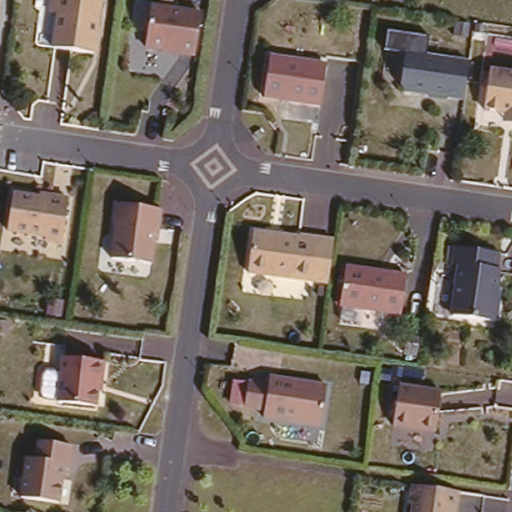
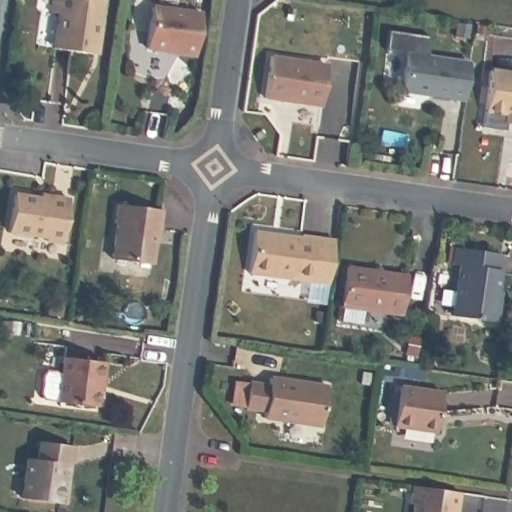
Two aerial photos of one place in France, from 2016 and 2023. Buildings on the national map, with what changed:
unchanged [(100,56),(96,55),(55,49),(60,14),(53,14),(55,0),(101,0),(105,1),(100,28),(104,29),(100,56)]
unchanged [(171,50),(152,47),(158,6),(208,14),(202,57),(186,54),(171,52),(171,50)]
unchanged [(464,99),(448,97),(448,99),(430,97),(430,95),(406,92),(401,85),(405,52),(468,61),(464,99)]
unchanged [(327,65),(322,107),(265,98),(271,57),(327,65)]
unchanged [(507,110),(485,107),(490,67),(512,70),(512,118),(506,117),(507,110)]
unchanged [(265,117),(270,123),(265,128),(260,122),(265,117)]
unchanged [(43,197),(55,198),(72,200),(66,245),(49,242),(50,239),(11,234),(16,196),(42,200),(43,197)]
unchanged [(159,240),(156,263),(116,259),(120,223),(117,222),(119,204),(165,208),(163,227),(161,241),(159,240)]
unchanged [(300,232),(300,230),(317,232),(312,276),(249,268),(254,226),(300,232)]
unchanged [(337,232),(332,283),(314,282),(312,276),(317,232),(337,232)]
unchanged [(501,306),(499,325),(455,320),(461,269),(453,268),(454,251),(502,257),(497,295),(502,295),(501,306)]
unchanged [(413,270),(408,309),(346,301),(351,262),(413,270)]
unchanged [(105,392),(103,407),(64,402),(69,358),(111,362),(109,381),(108,392),(105,392)]
unchanged [(246,406),(250,376),(272,378),(268,408),(246,406)]
unchanged [(330,387),(324,427),(267,418),(272,378),(330,387)]
unchanged [(445,391),(440,432),(397,426),(402,386),(445,391)]
unchanged [(38,458),(41,440),(74,444),(71,463),(69,478),(64,477),(60,502),(21,496),(28,456),(38,458)]
unchanged [(410,500),(412,481),(460,488),(457,506),(456,512),(412,512),(414,500),(410,500)]

